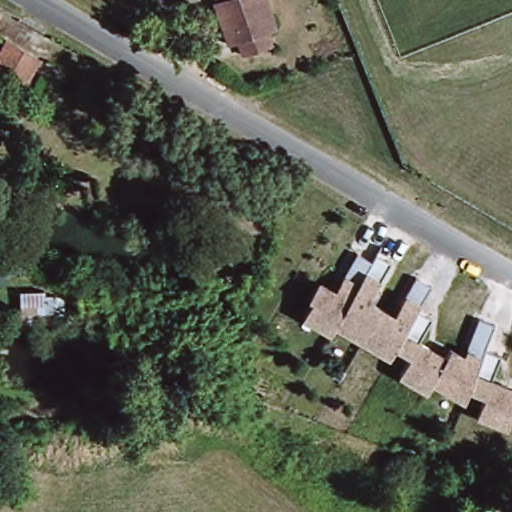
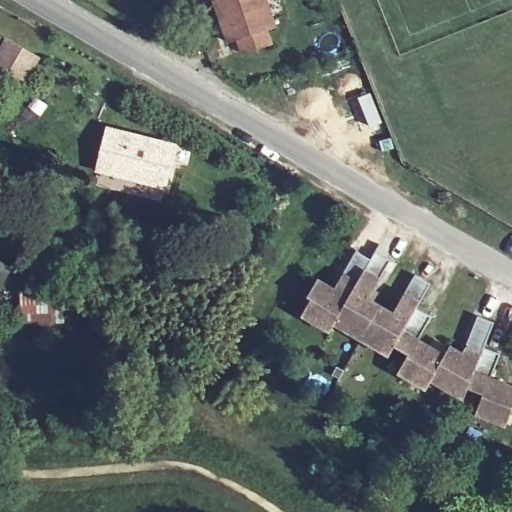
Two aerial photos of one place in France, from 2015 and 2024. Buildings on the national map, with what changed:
unchanged [(272,21),(262,25),(265,39),(238,47),(233,34),(226,37),(213,0),(265,0),(272,21)]
unchanged [(7,32),(40,50),(24,73),(0,59),(0,42),(7,32)]
new [(35,95),(49,105),(31,130),(16,117),(35,95)]
new [(106,125),(181,144),(168,190),(94,171),(106,125)]
unchanged [(472,386),(469,395),(436,377),(431,386),(403,370),(412,352),(399,343),(392,353),(338,321),(334,329),(305,313),(324,280),(336,287),(360,249),(375,257),(379,249),(394,258),(372,296),(396,311),(418,272),(434,281),(420,305),(435,315),(422,338),(448,353),(453,345),(466,351),(482,313),(498,320),(489,345),(504,351),(495,376),(512,384),(512,421),(512,422),(481,411),(484,401),(488,391),(472,386)]
unchanged [(22,290),(46,293),(46,309),(54,311),(53,326),(20,323),(22,290)]

